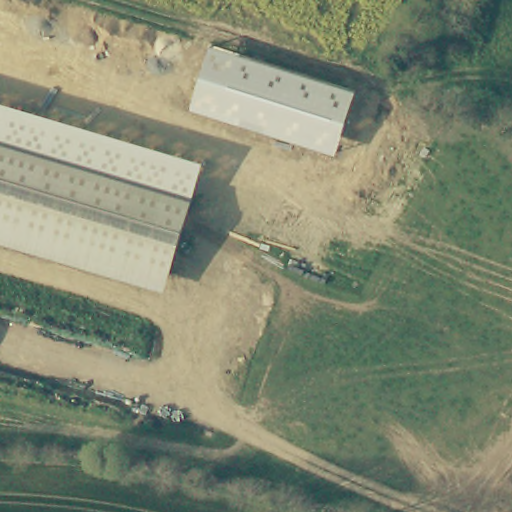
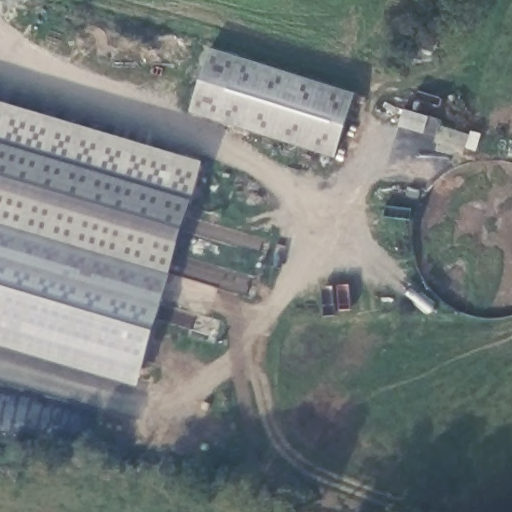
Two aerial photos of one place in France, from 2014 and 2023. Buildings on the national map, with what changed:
unchanged [(192,111),(211,46),(356,92),(335,157),(192,111)]
unchanged [(0,102),(204,163),(165,292),(0,243),(0,102)]
new [(0,243),(165,292),(139,387),(0,346),(0,243)]

